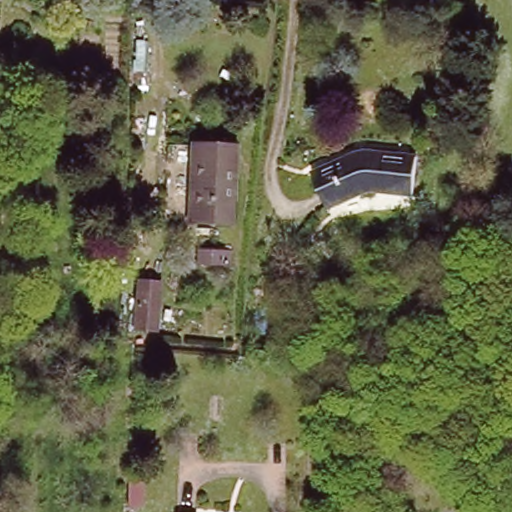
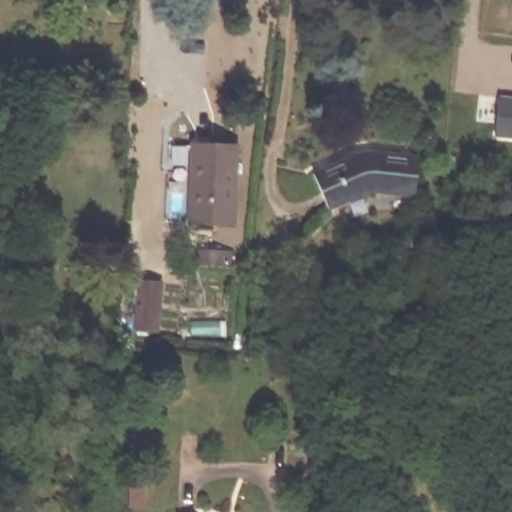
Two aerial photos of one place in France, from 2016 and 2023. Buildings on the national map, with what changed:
new [(512,97),(512,139),(494,137),(499,96),(512,97)]
unchanged [(321,172),(359,146),(418,153),(416,196),(363,193),(334,204),(321,172)]
unchanged [(236,228),(190,222),(198,150),(243,158),(236,228)]
unchanged [(172,226),(202,229),(201,242),(170,239),(172,226)]
unchanged [(137,262),(134,307),(113,305),(116,260),(137,262)]

